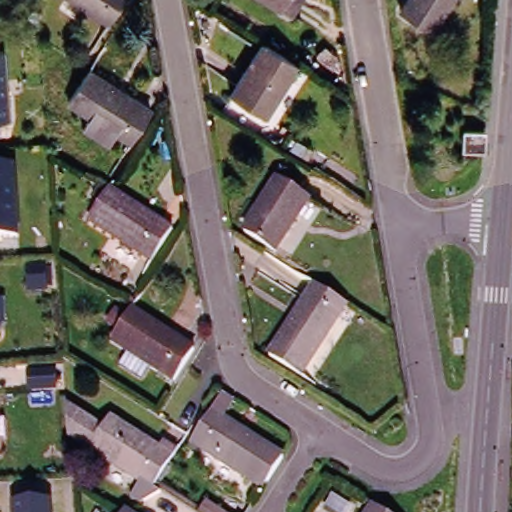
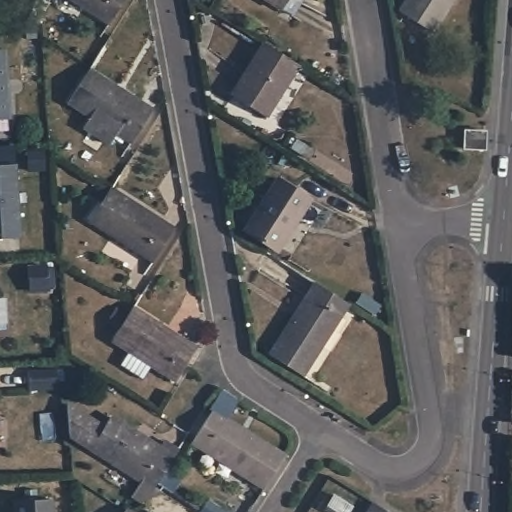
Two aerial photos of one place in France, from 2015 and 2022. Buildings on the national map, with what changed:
unchanged [(110,17),(83,0),(121,0),(110,17)]
unchanged [(287,15),(278,9),(264,0),(297,0),(287,15)]
unchanged [(400,8),(405,0),(448,0),(430,28),(400,8)]
unchanged [(230,96),(261,46),(295,68),(263,117),(230,96)]
unchanged [(5,47),(9,115),(0,116),(0,48),(5,47)]
unchanged [(128,139),(67,99),(87,68),(149,108),(128,139)]
unchanged [(459,148),(482,150),(481,158),(481,169),(475,169),(458,168),(459,148)]
unchanged [(14,162),(19,234),(0,235),(0,164),(14,162)]
unchanged [(276,250),(247,232),(280,180),(310,199),(276,250)]
unchanged [(150,262),(87,220),(107,188),(171,230),(150,262)]
unchanged [(270,357),(315,287),(345,307),(300,377),(270,357)]
unchanged [(174,381),(110,340),(128,311),(130,309),(194,351),(174,381)]
unchanged [(225,391),(241,401),(230,419),(286,456),(266,487),(192,440),(213,408),(225,391)]
unchanged [(87,445),(70,438),(66,403),(101,424),(87,445)]
unchanged [(170,456),(150,487),(87,445),(107,415),(170,456)]
unchanged [(48,501),(50,512),(13,512),(12,503),(48,501)]
unchanged [(326,512),(331,503),(344,512),(326,512)]
unchanged [(385,512),(368,512),(373,504),(380,509),(385,512)]
unchanged [(131,512),(126,512),(127,509),(131,512)]

